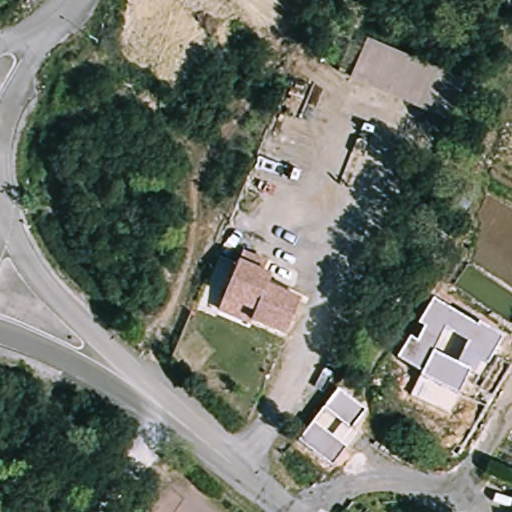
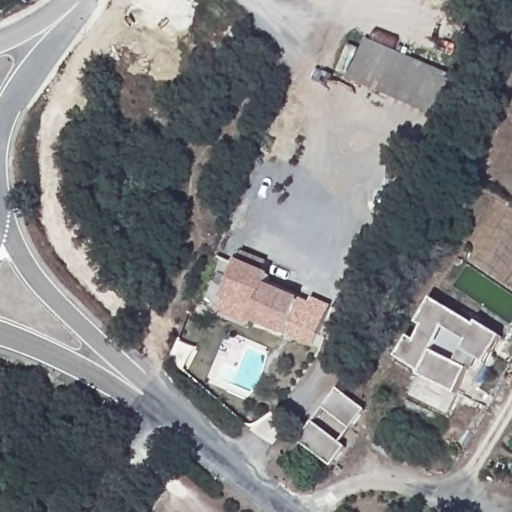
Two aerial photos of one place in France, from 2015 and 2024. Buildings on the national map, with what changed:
unchanged [(452,125),(367,88),(350,77),(368,39),(469,80),(452,125)]
unchanged [(222,300),(241,252),(255,257),(266,261),(262,273),(269,276),(266,286),(299,298),(285,335),(251,323),(217,311),(222,300)]
new [(332,307),(313,348),(285,337),(285,335),(299,298),(310,305),(312,298),(332,307)]
unchanged [(409,337),(417,343),(424,328),(419,325),(434,302),(477,328),(480,324),(503,339),(488,366),(480,360),(470,374),(460,396),(422,374),(397,358),(409,337)]
unchanged [(352,427),(326,407),(339,390),(366,410),(352,427)]
unchanged [(332,465),(299,440),(316,423),(346,448),(332,465)]

